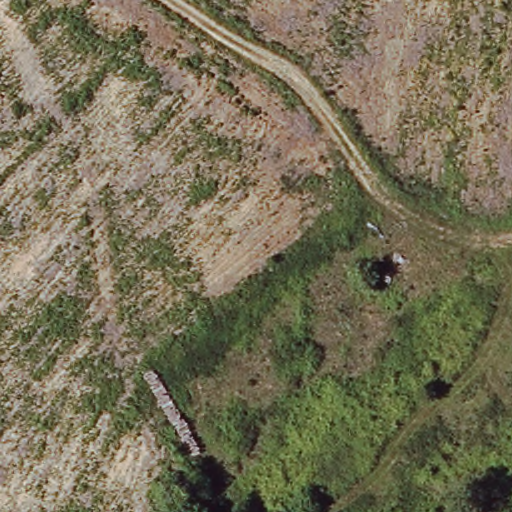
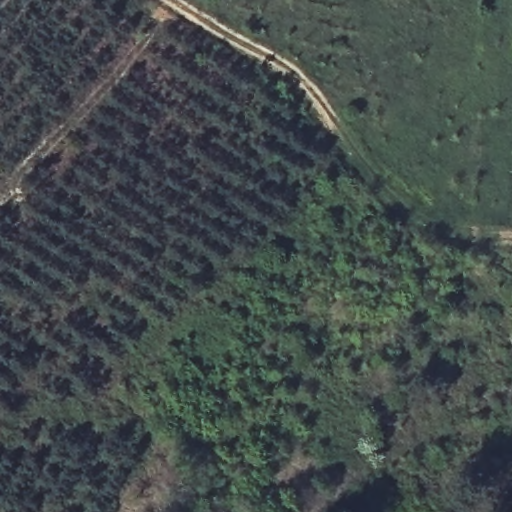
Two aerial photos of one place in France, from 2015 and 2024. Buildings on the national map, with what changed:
[]

